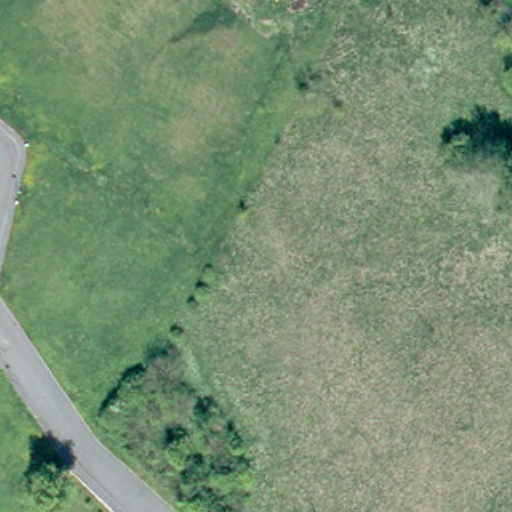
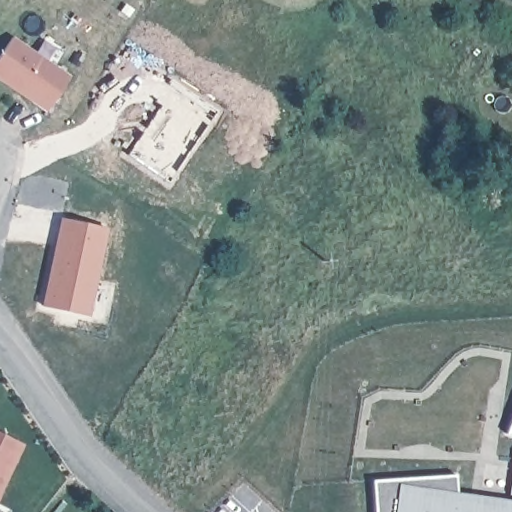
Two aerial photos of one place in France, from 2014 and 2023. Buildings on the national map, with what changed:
new [(46,112),(0,81),(0,55),(13,36),(70,75),(46,112)]
new [(57,218),(107,228),(89,317),(38,308),(57,218)]
new [(506,434),(512,417),(512,435),(506,434)]
new [(0,498),(0,434),(24,445),(0,498)]
new [(454,477),(455,492),(512,501),(512,512),(374,512),(372,480),(454,477)]

